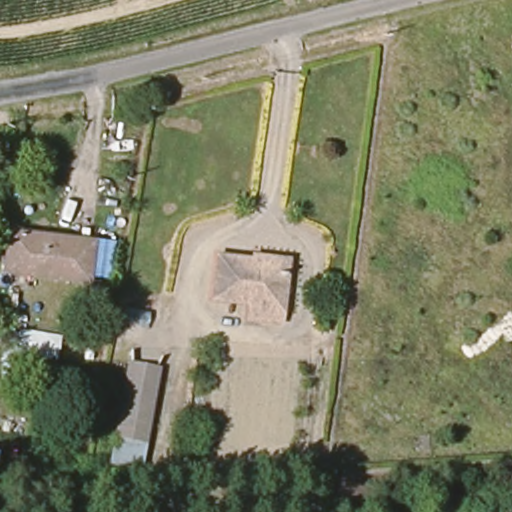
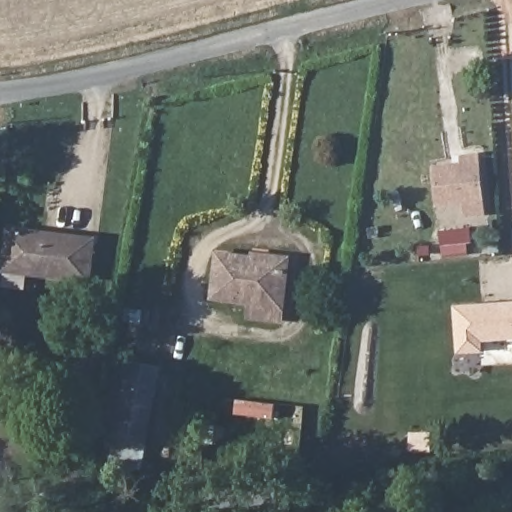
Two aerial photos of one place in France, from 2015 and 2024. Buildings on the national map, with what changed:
new [(479,155),(482,200),(438,205),(435,167),(462,165),(461,157),(479,155)]
unchanged [(90,242),(86,282),(3,271),(9,233),(90,242)]
unchanged [(284,259),(278,300),(283,302),(281,318),(247,315),(249,299),(212,296),(216,252),(284,259)]
new [(484,353),(457,354),(453,305),(512,301),(512,339),(483,342),(484,353)]
unchanged [(129,361),(158,367),(143,444),(138,472),(108,464),(113,437),(129,361)]

